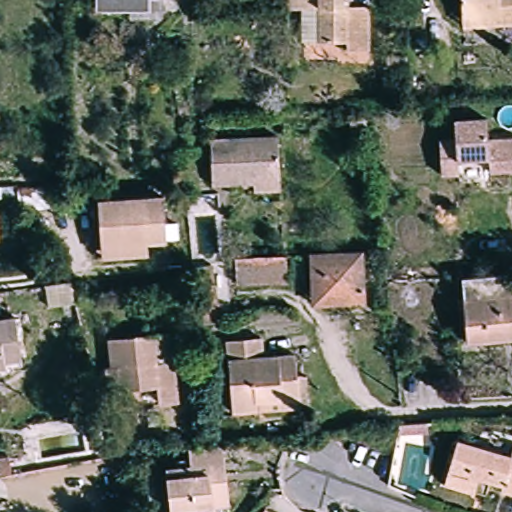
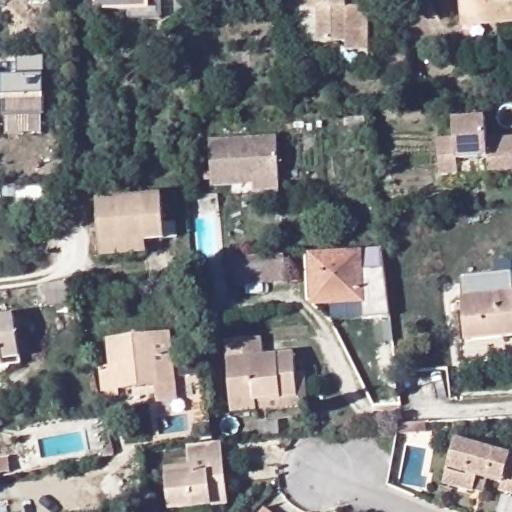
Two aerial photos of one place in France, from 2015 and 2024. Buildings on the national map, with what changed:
unchanged [(129,4),(96,5),(96,0),(163,0),(163,15),(129,15),(129,4)]
unchanged [(301,4),(286,4),(286,0),(348,0),(348,2),(370,2),(370,45),(346,46),(346,38),(318,38),(302,38),(301,4)]
unchanged [(462,18),(461,0),(512,0),(512,24),(501,25),(463,28),(462,18)]
unchanged [(407,55),(407,69),(387,69),(387,55),(407,55)]
new [(4,80),(19,80),(19,60),(47,60),(46,119),(3,118),(4,80)]
unchanged [(456,140),(454,120),(487,119),(488,140),(512,138),(512,170),(490,172),(489,158),(458,160),(459,174),(442,175),(440,140),(456,140)]
unchanged [(278,136),(280,178),(256,180),(257,184),(212,186),(210,140),(278,136)]
unchanged [(18,209),(19,196),(0,196),(0,184),(18,184),(54,181),(57,205),(18,209)]
unchanged [(167,197),(171,240),(152,241),(153,254),(102,258),(102,248),(107,247),(103,202),(167,197)]
unchanged [(364,303),(312,305),(310,255),(362,253),(364,303)]
unchanged [(284,257),(286,257),(287,282),(270,283),(235,284),(235,258),(284,257)]
unchanged [(215,285),(199,287),(196,267),(212,265),(215,285)]
unchanged [(468,343),(461,279),(512,274),(512,338),(468,343)]
unchanged [(22,359),(4,361),(5,367),(0,368),(0,320),(16,318),(22,359)]
unchanged [(309,401),(258,406),(232,408),(226,336),(261,333),(263,352),(295,350),(297,371),(307,370),(309,401)]
unchanged [(188,410),(171,412),(169,394),(130,398),(131,403),(118,405),(117,400),(115,400),(112,380),(121,378),(118,349),(180,342),(188,410)]
unchanged [(417,424),(427,424),(428,432),(418,433),(398,434),(397,434),(399,425),(404,425),(417,424)]
unchanged [(189,461),(187,441),(223,438),(229,500),(170,506),(166,472),(165,463),(189,461)]
unchanged [(475,491),(445,482),(448,470),(457,440),(512,456),(512,494),(502,491),(504,485),(488,481),(485,494),(475,491)]
unchanged [(11,473),(0,474),(0,460),(10,458),(11,473)]
unchanged [(276,512),(259,512),(265,504),(276,512)]
unchanged [(116,512),(115,506),(127,505),(128,512),(116,512)]

